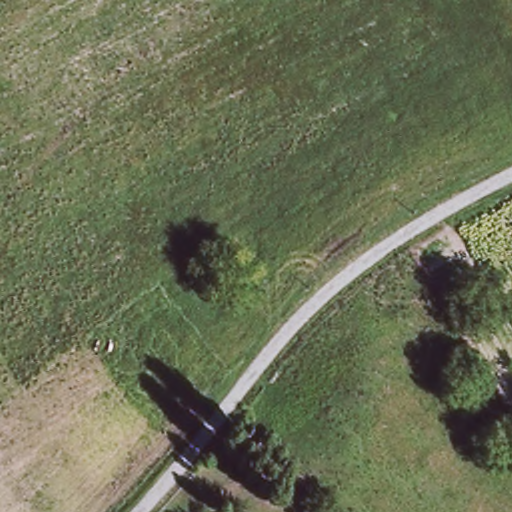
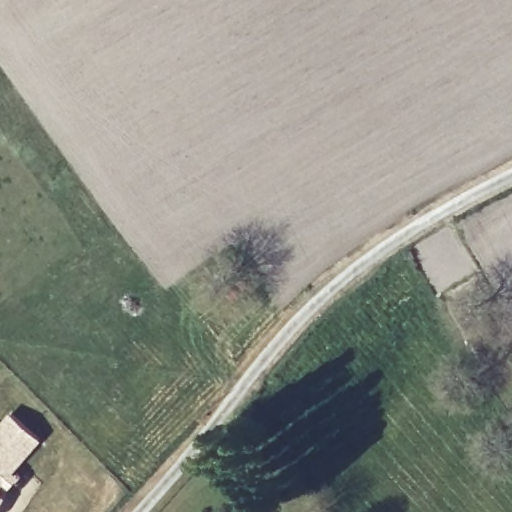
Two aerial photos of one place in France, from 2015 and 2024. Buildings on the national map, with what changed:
new [(0,488),(0,426),(10,414),(41,438),(0,488)]
new [(0,498),(0,494),(1,496),(0,498)]

